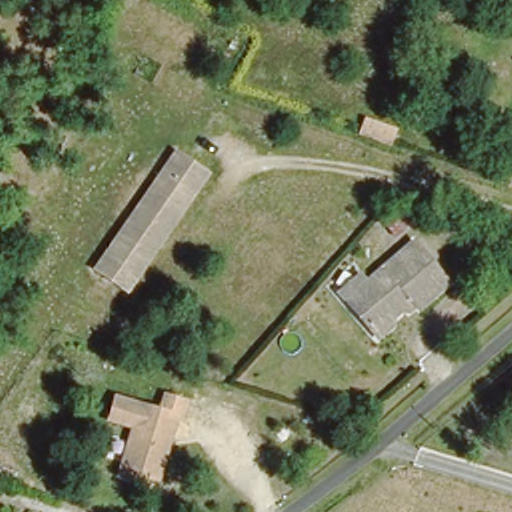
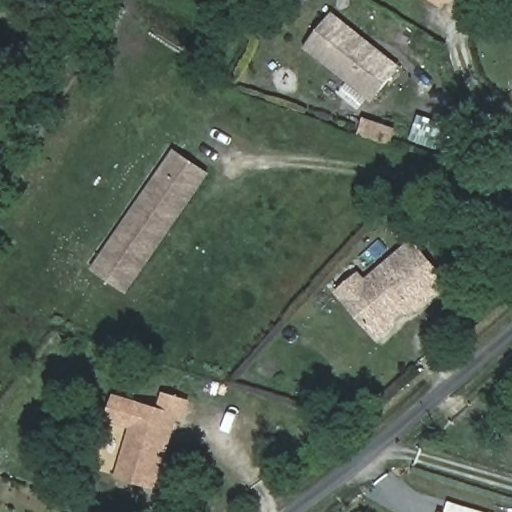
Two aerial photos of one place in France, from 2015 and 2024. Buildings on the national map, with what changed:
new [(442,9),(427,0),(446,0),(442,9)]
new [(303,48),(333,12),(402,66),(373,103),(303,48)]
unchanged [(126,294),(89,268),(174,146),(210,172),(126,294)]
unchanged [(355,275),(363,284),(409,241),(446,280),(418,307),(407,295),(400,302),(400,309),(374,334),(347,303),(337,292),(355,275)]
unchanged [(157,405),(161,390),(190,397),(184,421),(176,420),(157,488),(114,476),(129,430),(104,421),(115,393),(157,405)]

